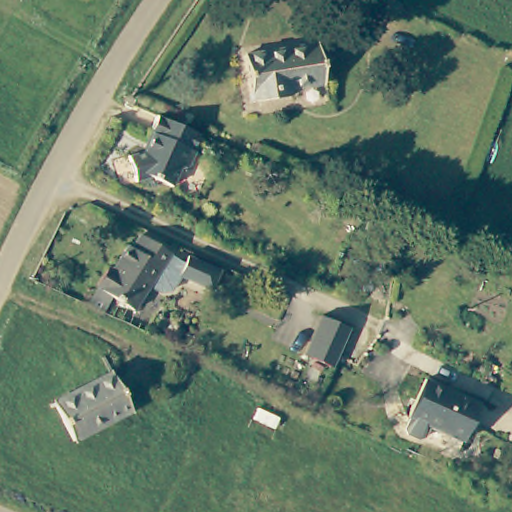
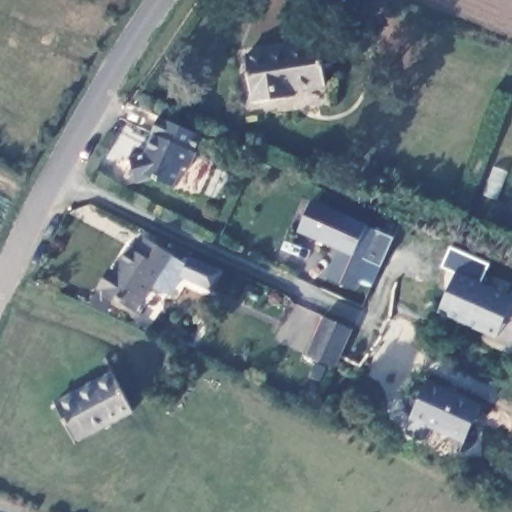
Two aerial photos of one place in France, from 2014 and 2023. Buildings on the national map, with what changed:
unchanged [(327,84),(293,87),(294,95),(252,100),(246,53),(322,44),(327,84)]
unchanged [(192,154),(197,156),(191,170),(182,166),(173,186),(154,179),(136,182),(130,158),(148,154),(156,136),(152,133),(160,118),(200,137),(192,154)]
new [(378,264),(370,283),(358,278),(353,288),(323,276),(332,247),(295,232),(311,199),(365,223),(364,225),(377,230),(391,237),(378,264)]
unchanged [(108,307),(107,308),(99,301),(98,303),(90,296),(98,286),(97,286),(112,268),(111,267),(120,257),(123,261),(136,246),(149,258),(150,257),(164,270),(171,262),(214,282),(201,310),(168,295),(162,303),(151,303),(143,296),(132,309),(133,310),(124,321),(123,320),(108,307)]
new [(479,280),(512,296),(512,301),(495,337),(436,311),(454,272),(439,266),(449,246),(487,263),(479,280)]
unchanged [(334,367),(305,352),(324,314),(353,328),(334,367)]
unchanged [(70,440),(51,403),(111,373),(130,410),(70,440)]
unchanged [(406,423),(426,377),(488,403),(462,448),(406,423)]

